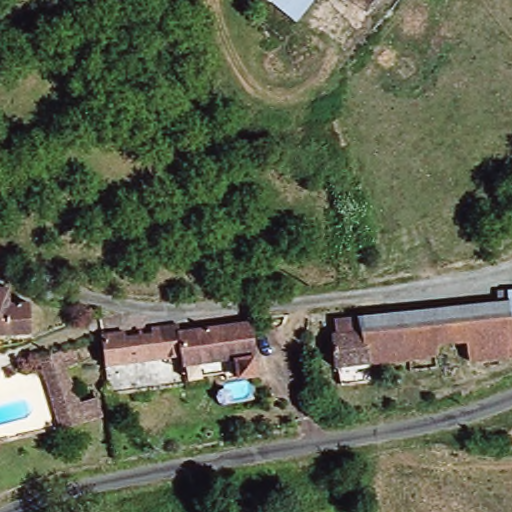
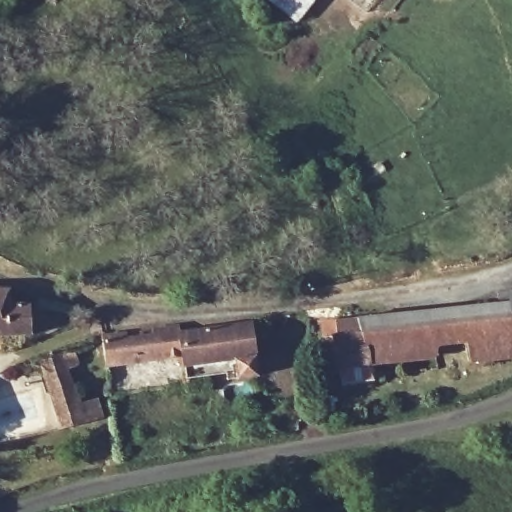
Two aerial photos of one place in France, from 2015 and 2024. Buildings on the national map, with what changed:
unchanged [(250,2),(251,0),(322,0),(294,37),(250,2)]
unchanged [(12,306),(28,306),(28,337),(0,339),(0,290),(10,290),(12,306)]
unchanged [(512,295),(512,337),(504,337),(505,305),(505,296),(512,295)]
unchanged [(463,365),(462,346),(437,348),(437,357),(335,368),(332,341),(340,340),(338,323),(505,305),(504,337),(512,337),(512,361),(463,365)]
unchanged [(251,330),(255,363),(185,373),(187,393),(107,402),(100,345),(177,333),(177,339),(251,330)]
unchanged [(76,355),(79,371),(70,373),(77,400),(96,394),(104,426),(61,438),(41,363),(76,355)]
unchanged [(257,384),(187,393),(185,373),(255,363),(257,384)]

